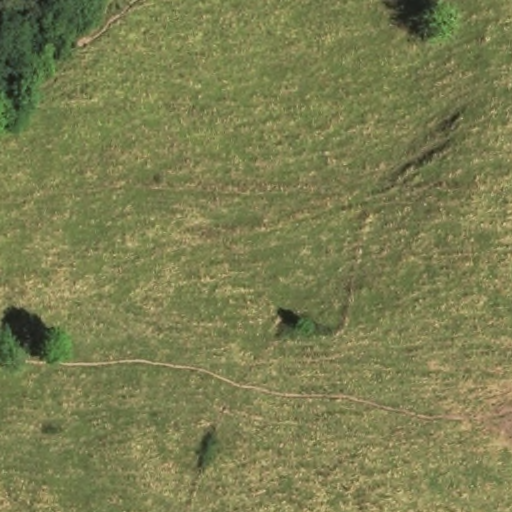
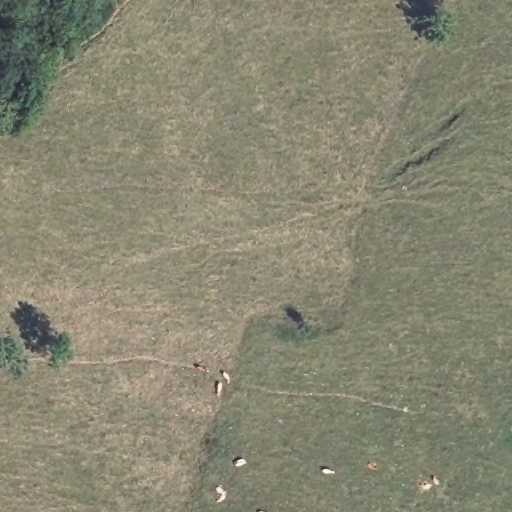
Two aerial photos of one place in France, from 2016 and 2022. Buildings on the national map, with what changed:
[]

